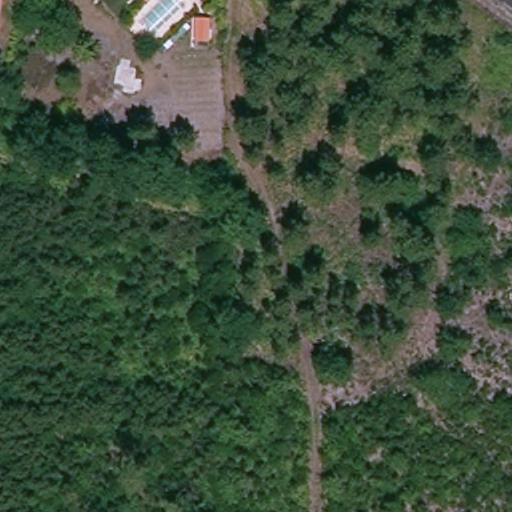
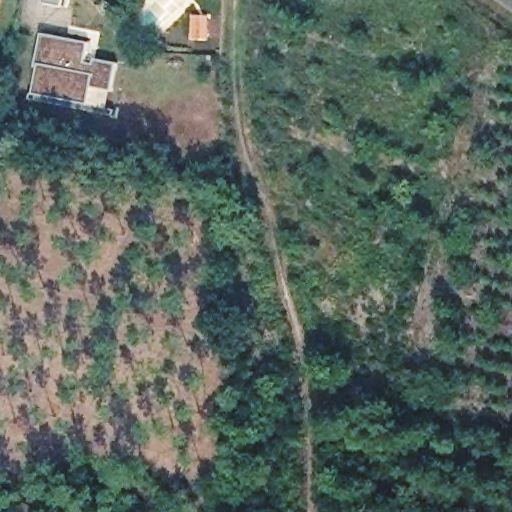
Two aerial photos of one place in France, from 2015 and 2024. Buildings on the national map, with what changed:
unchanged [(0,25),(0,0),(4,0),(0,25)]
new [(43,78),(40,77),(47,44),(94,53),(90,73),(98,75),(99,70),(122,75),(116,103),(96,99),(93,115),(38,105),(43,78)]

